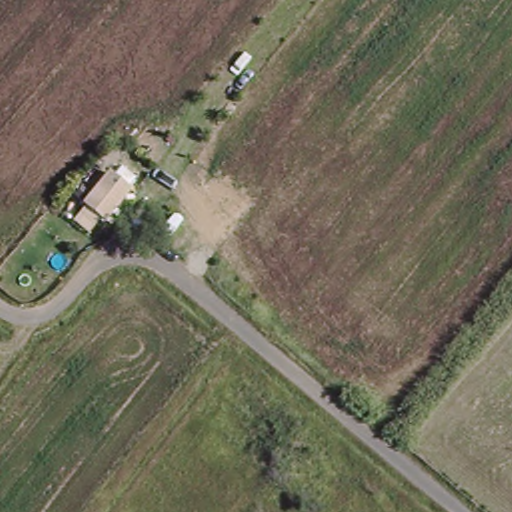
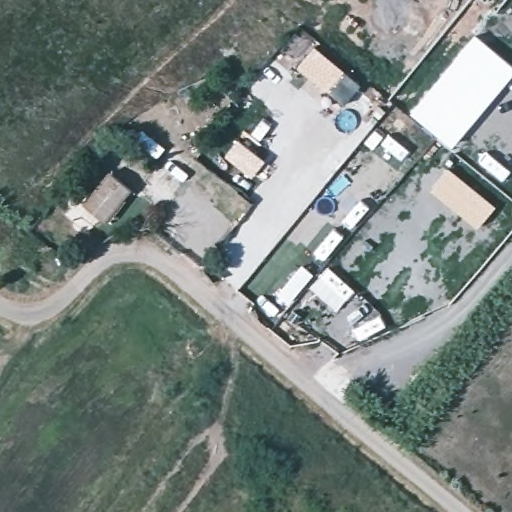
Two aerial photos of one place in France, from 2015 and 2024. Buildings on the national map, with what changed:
new [(512,64),(512,74),(450,146),(410,113),(475,34),(512,64)]
new [(314,45),(345,70),(327,91),(296,67),(314,45)]
new [(447,166),(496,206),(477,229),(429,189),(447,166)]
unchanged [(105,218),(83,200),(105,172),(127,188),(105,218)]

